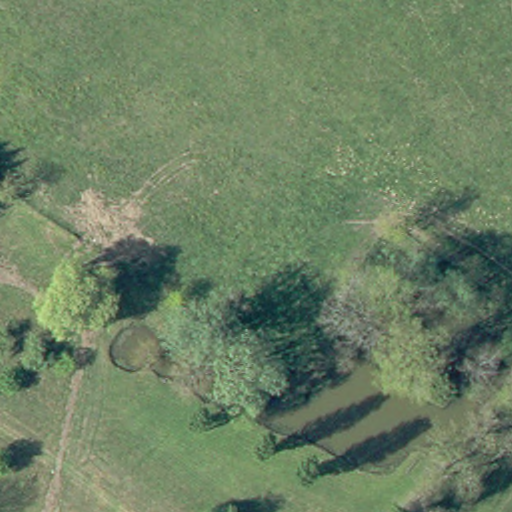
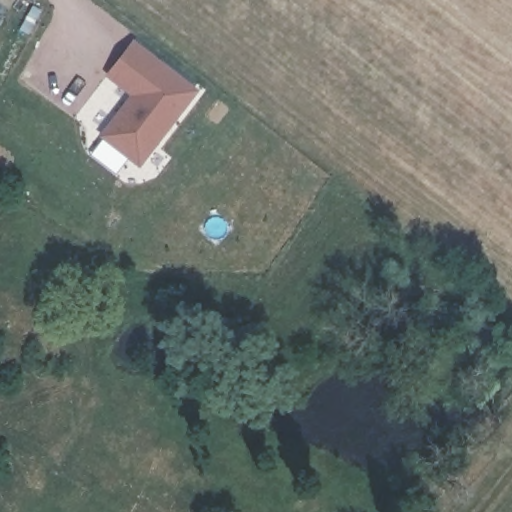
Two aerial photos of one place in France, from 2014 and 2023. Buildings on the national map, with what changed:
new [(139,167),(96,135),(127,93),(105,75),(133,38),(198,88),(139,167)]

